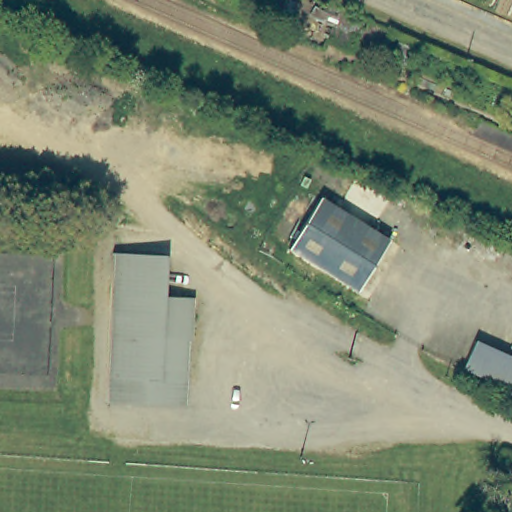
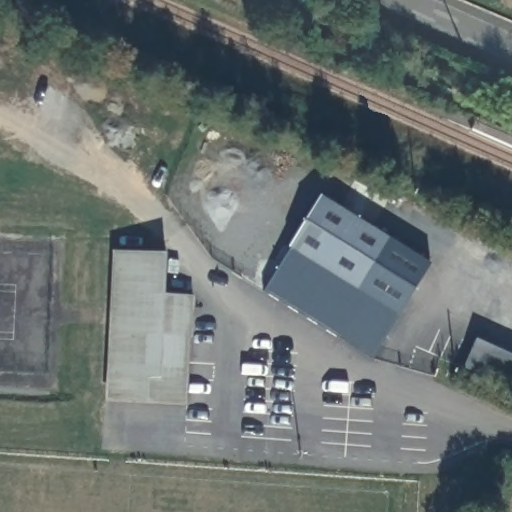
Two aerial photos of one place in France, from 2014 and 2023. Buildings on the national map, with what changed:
unchanged [(317,195),(391,235),(361,288),(289,247),(293,240),(317,195)]
new [(373,356),(265,293),(289,247),(361,288),(388,237),(431,263),(373,356)]
unchanged [(111,375),(115,310),(123,310),(125,273),(117,273),(118,250),(169,252),(166,293),(195,295),(192,337),(187,337),(185,379),(111,375)]
unchanged [(512,355),(512,388),(461,365),(472,338),(512,355)]
unchanged [(185,379),(184,398),(110,395),(111,375),(185,379)]

